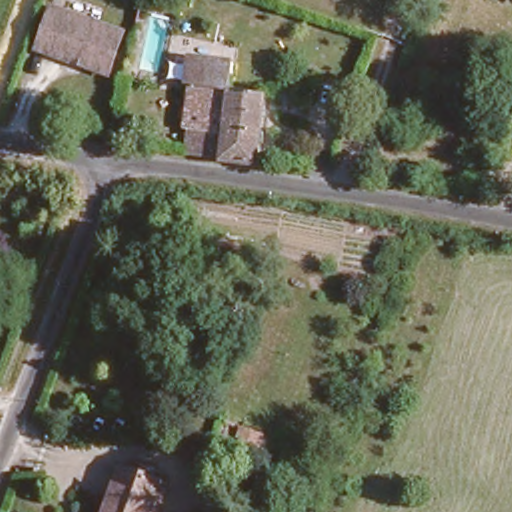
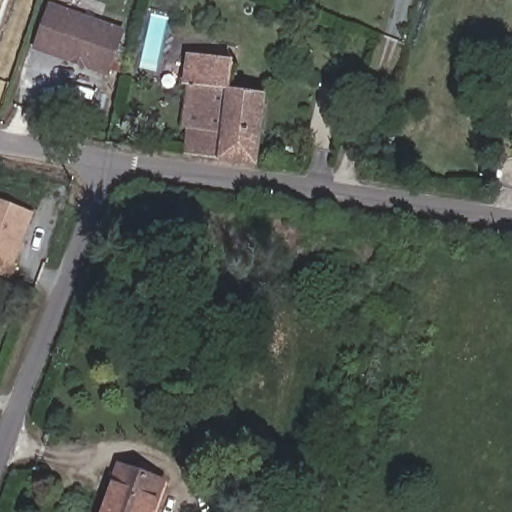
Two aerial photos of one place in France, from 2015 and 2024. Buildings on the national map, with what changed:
unchanged [(125,34),(110,76),(86,68),(84,64),(78,62),(74,64),(37,51),(52,9),(125,34)]
unchanged [(189,150),(191,122),(186,121),(191,80),(184,79),(188,54),(222,56),(223,47),(233,49),(229,85),(262,89),(253,158),(189,150)]
new [(10,280),(0,277),(0,200),(36,215),(10,280)]
unchanged [(231,453),(245,420),(269,430),(256,463),(231,453)]
unchanged [(167,477),(154,512),(101,512),(121,460),(167,477)]

